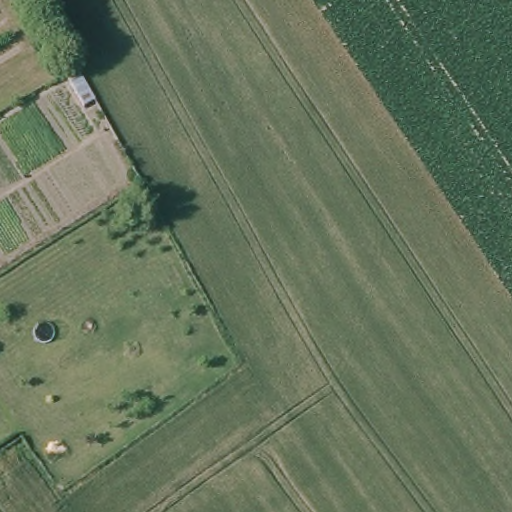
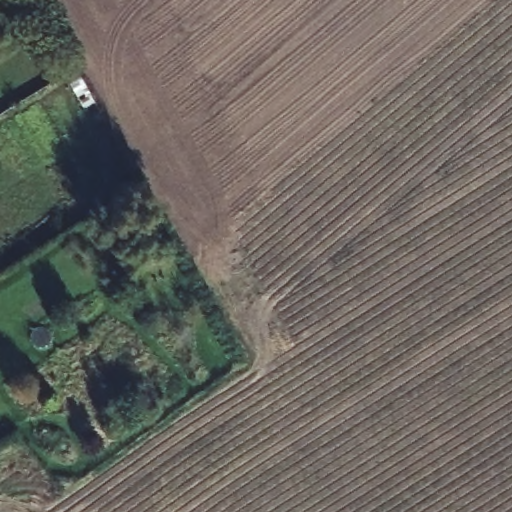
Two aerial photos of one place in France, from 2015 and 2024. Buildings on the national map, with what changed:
unchanged [(65,74),(76,68),(95,102),(84,108),(65,74)]

